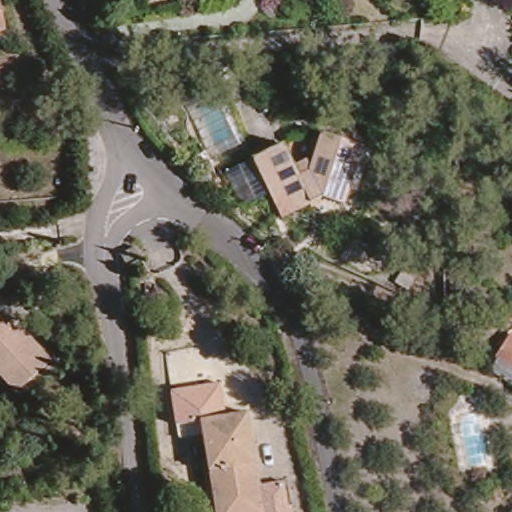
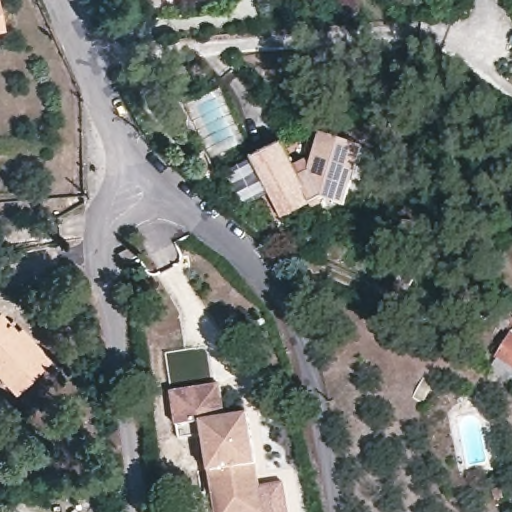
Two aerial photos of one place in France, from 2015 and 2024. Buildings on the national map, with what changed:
unchanged [(9,30),(0,32),(0,0),(2,0),(9,30)]
unchanged [(288,139),(303,172),(313,167),(325,129),(370,143),(368,155),(363,154),(348,199),(326,194),(315,199),(315,200),(284,214),(257,154),(288,139)]
unchanged [(284,214),(258,225),(231,166),(257,154),(284,214)]
unchanged [(134,249),(138,256),(131,259),(127,252),(134,249)]
unchanged [(5,312),(21,329),(25,325),(54,357),(18,390),(0,371),(0,316),(5,312)]
unchanged [(512,346),(512,362),(505,357),(512,346)]
unchanged [(203,423),(178,428),(172,391),(222,383),(227,420),(203,423)]
unchanged [(266,512),(218,512),(203,423),(250,417),(266,512)]
unchanged [(289,512),(266,512),(262,486),(284,482),(289,512)]

